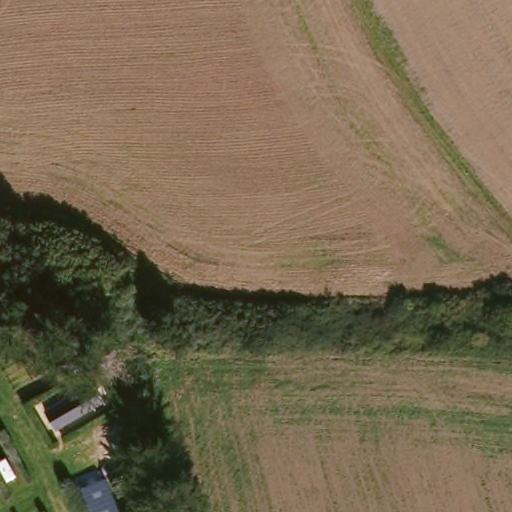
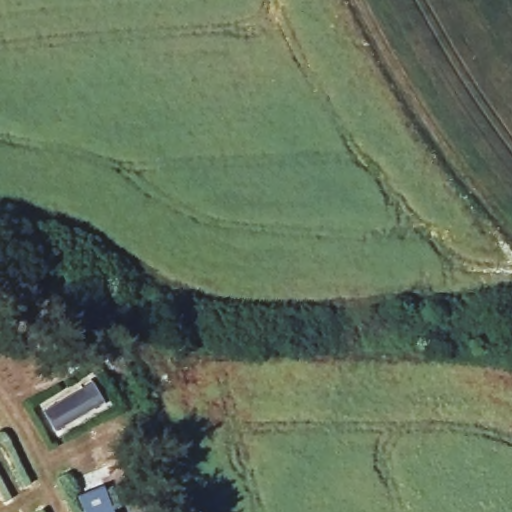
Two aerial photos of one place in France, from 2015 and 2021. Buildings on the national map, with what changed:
unchanged [(88,374),(98,391),(84,399),(50,419),(40,402),(69,384),(88,374)]

